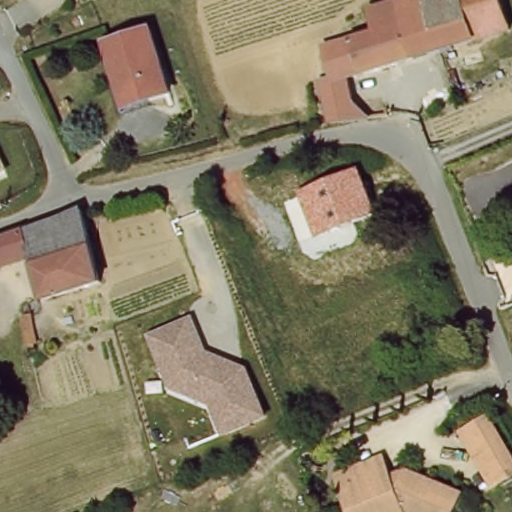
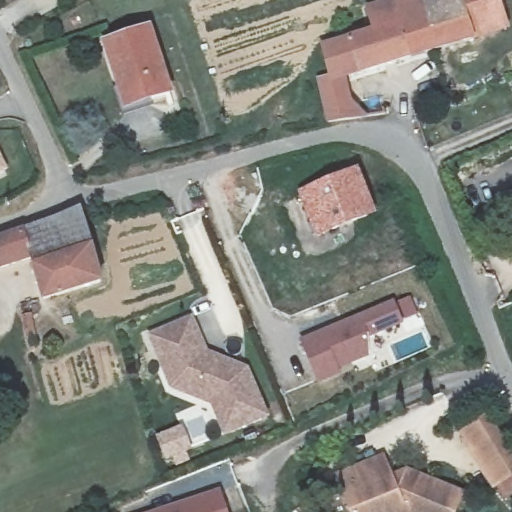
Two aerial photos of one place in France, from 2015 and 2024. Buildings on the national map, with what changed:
unchanged [(343,80),(351,107),(384,99),(389,115),(332,120),(323,81),(333,78),(327,50),(373,37),(367,12),(408,0),(423,0),(439,53),(343,80)]
unchanged [(480,41),(439,53),(423,0),(502,0),(505,10),(512,32),(480,41)]
unchanged [(114,40),(155,30),(172,94),(129,104),(114,40)]
unchanged [(10,173),(0,178),(0,150),(10,173)]
unchanged [(358,173),(376,214),(320,236),(303,192),(358,173)]
unchanged [(51,228),(83,210),(102,285),(47,303),(33,261),(0,271),(0,245),(51,228)]
new [(397,300),(398,304),(412,297),(420,316),(406,325),(370,342),(371,358),(341,370),(343,375),(318,385),(301,339),(397,300)]
unchanged [(211,351),(250,366),(272,419),(226,437),(211,405),(172,389),(148,334),(196,317),(211,351)]
unchanged [(512,442),(512,480),(498,487),(464,429),(495,413),(512,442)]
unchanged [(396,512),(391,510),(387,512),(348,512),(332,472),(352,465),(377,457),(380,459),(464,484),(455,512),(396,512)]
new [(230,512),(147,512),(222,489),(230,512)]

